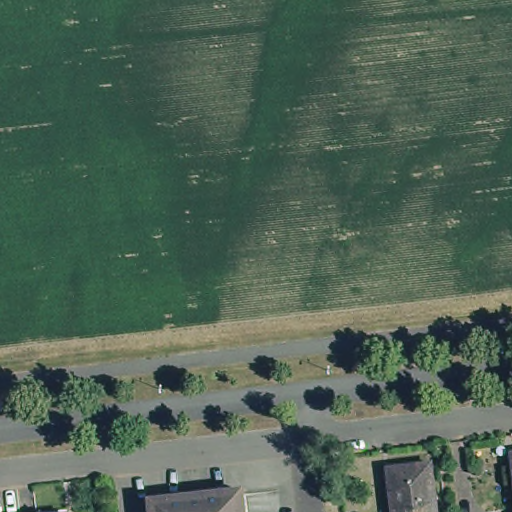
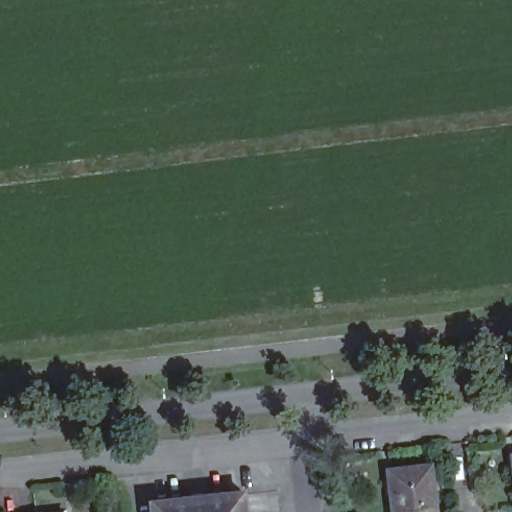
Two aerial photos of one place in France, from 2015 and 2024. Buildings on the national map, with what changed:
unchanged [(435,512),(393,512),(387,465),(430,460),(435,512)]
unchanged [(250,512),(157,512),(155,495),(247,485),(250,512)]
unchanged [(47,512),(45,512),(46,511),(47,512)]

